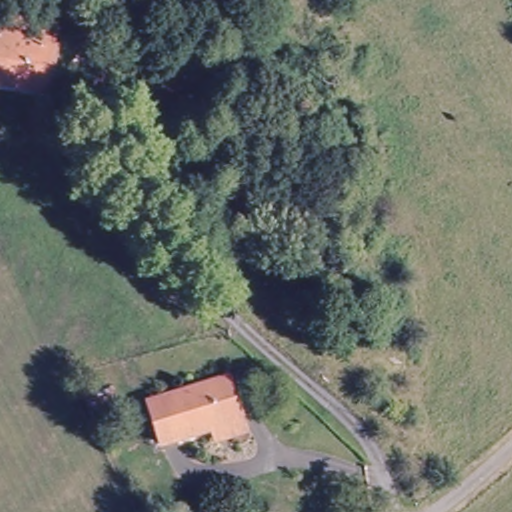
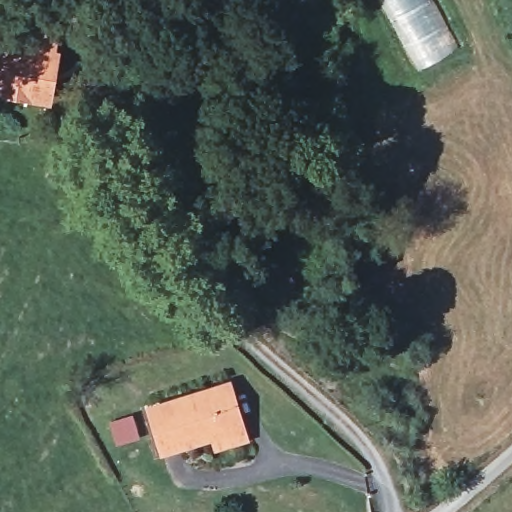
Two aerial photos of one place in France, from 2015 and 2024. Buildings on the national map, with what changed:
new [(421,69),(382,0),(430,0),(457,49),(421,69)]
unchanged [(0,23),(24,27),(55,32),(53,47),(44,97),(0,89),(0,23)]
unchanged [(240,430),(167,456),(153,416),(226,390),(240,430)]

